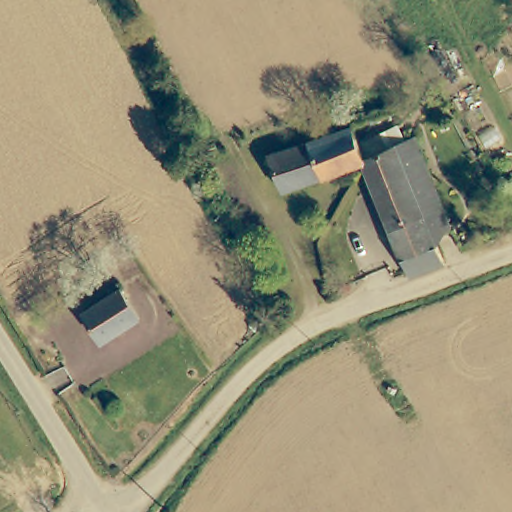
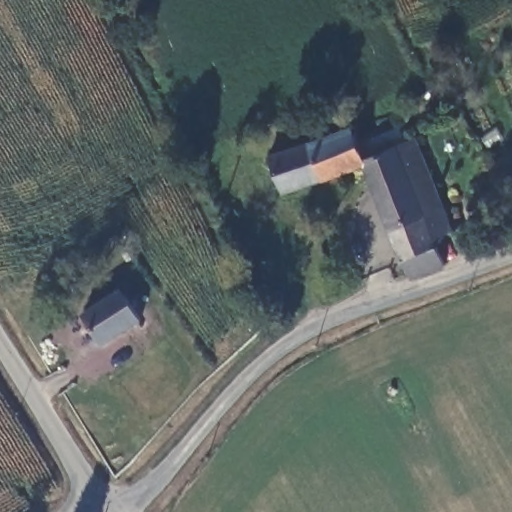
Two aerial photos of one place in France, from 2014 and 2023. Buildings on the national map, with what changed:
unchanged [(363,162),(285,196),(271,159),(350,128),(363,162)]
unchanged [(363,162),(416,140),(452,232),(437,238),(448,263),(451,272),(414,286),(410,275),(370,181),(363,162)]
unchanged [(77,316),(118,291),(139,321),(97,347),(77,316)]

